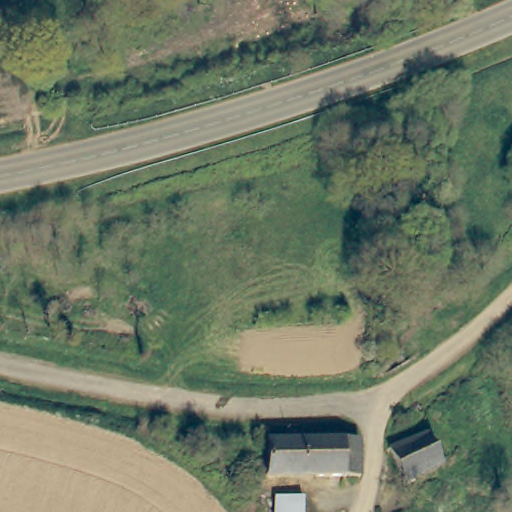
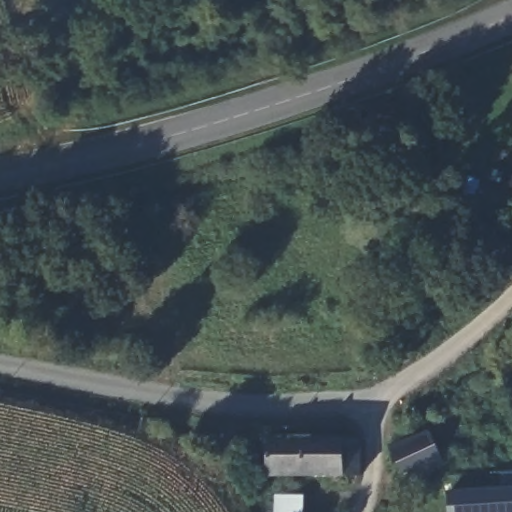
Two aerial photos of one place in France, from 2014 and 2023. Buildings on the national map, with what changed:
unchanged [(442,460),(406,478),(394,450),(429,432),(442,460)]
unchanged [(349,473),(263,476),(263,442),(348,441),(349,473)]
new [(499,486),(499,473),(512,472),(512,512),(447,512),(445,490),(499,486)]
unchanged [(304,493),(305,512),(277,512),(276,495),(304,493)]

